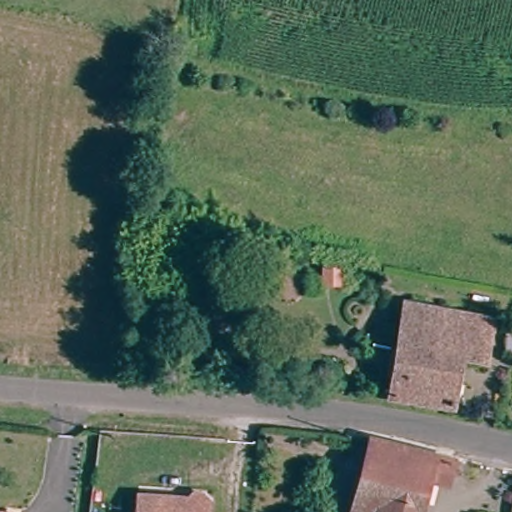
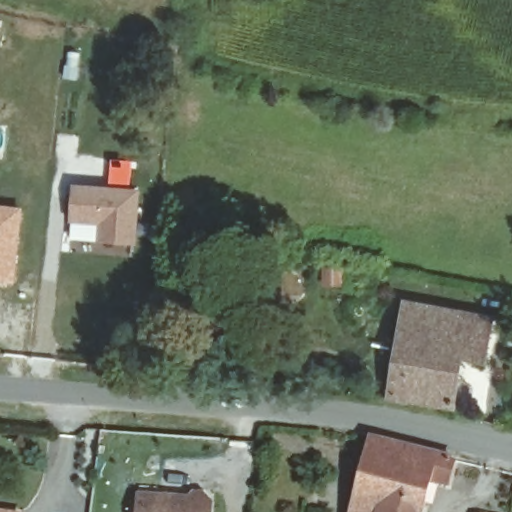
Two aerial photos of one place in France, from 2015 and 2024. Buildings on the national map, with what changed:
new [(71,183),(109,185),(111,159),(132,160),(130,186),(140,187),(135,245),(69,240),(71,183)]
new [(24,206),(15,284),(0,283),(0,204),(24,206)]
unchanged [(247,326),(220,326),(220,296),(247,296),(247,326)]
unchanged [(484,362),(461,358),(452,410),(430,402),(388,392),(405,301),(492,317),(484,362)]
unchanged [(433,476),(423,512),(351,512),(372,435),(455,457),(449,480),(433,476)]
unchanged [(154,496),(188,499),(194,493),(205,495),(211,500),(210,512),(138,512),(139,495),(154,496)]

